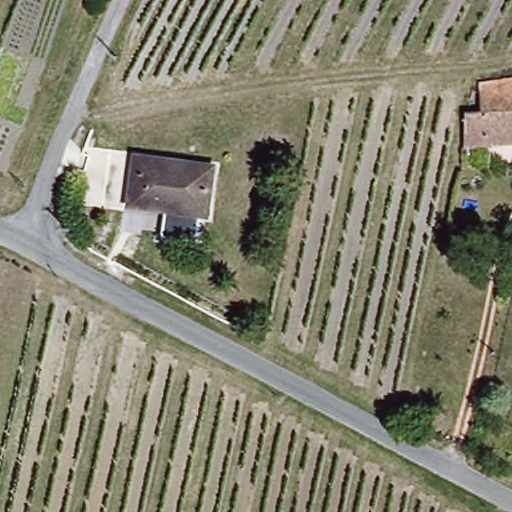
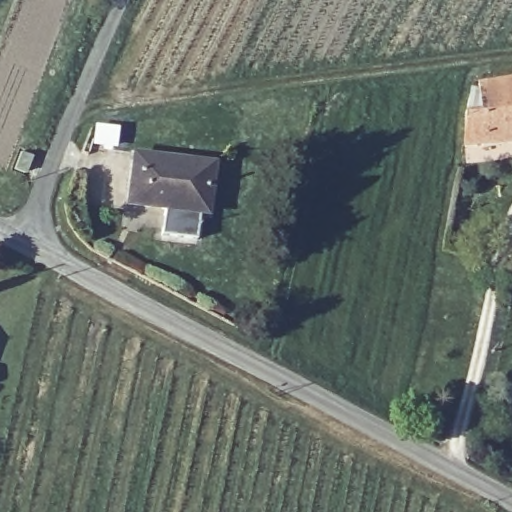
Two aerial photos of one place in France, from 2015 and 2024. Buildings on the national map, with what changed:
unchanged [(512,145),(472,145),(478,78),(512,74),(512,145)]
unchanged [(136,157),(212,168),(205,216),(130,205),(136,157)]

